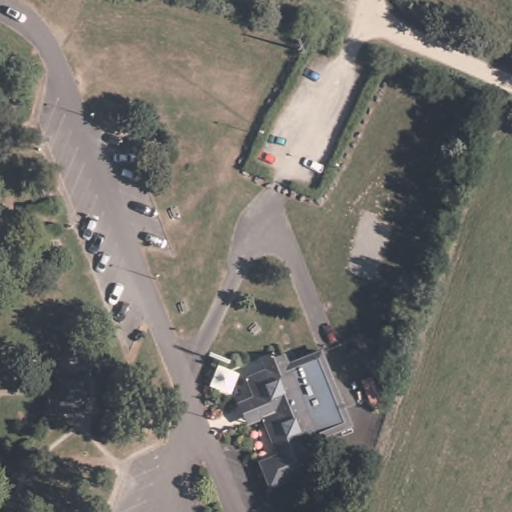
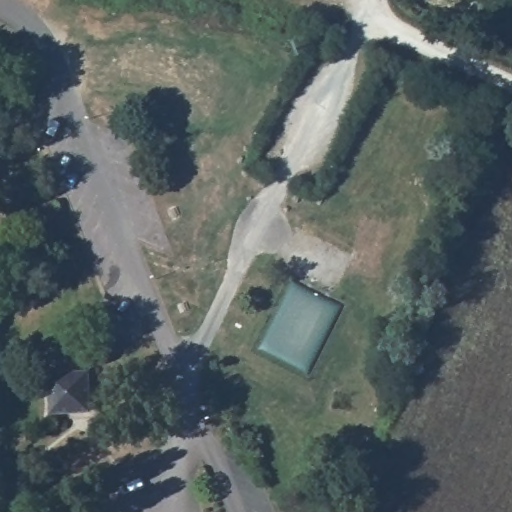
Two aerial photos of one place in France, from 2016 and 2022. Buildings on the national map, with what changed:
demolished [(285,357),(287,360),(321,346),(351,420),(303,439),(313,464),(269,481),(260,457),(278,450),(261,409),(255,396),(246,373),(264,365),(285,357)]
unchanged [(92,376),(92,418),(47,418),(46,374),(92,376)]

